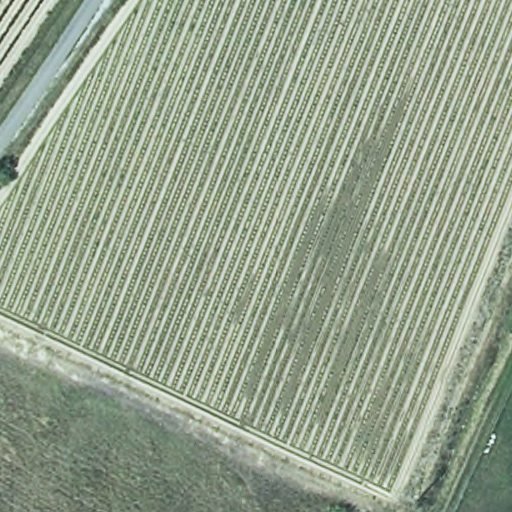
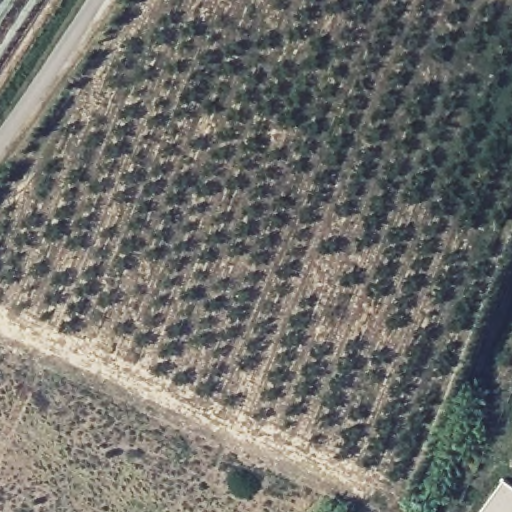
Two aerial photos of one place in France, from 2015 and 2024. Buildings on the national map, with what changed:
new [(512,486),(512,512),(480,512),(503,480),(512,486)]

